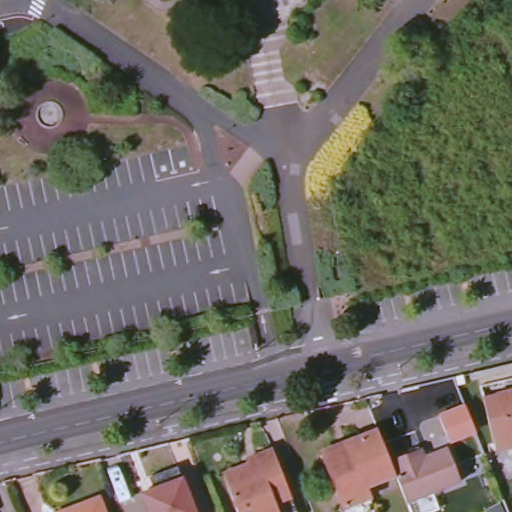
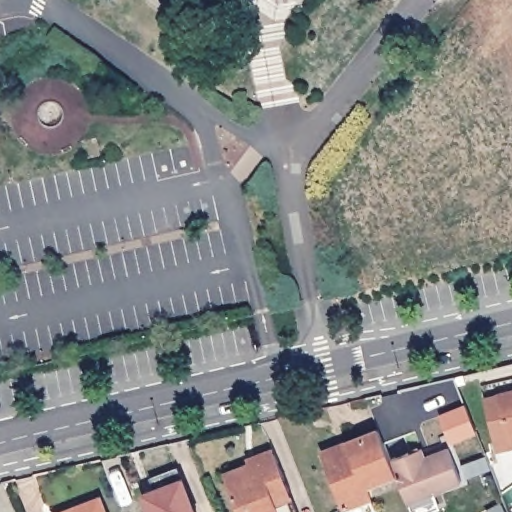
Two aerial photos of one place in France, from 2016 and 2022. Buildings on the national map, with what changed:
unchanged [(499,396),(512,393),(512,448),(510,438),(499,396)]
unchanged [(373,498),(347,510),(326,458),(350,448),(348,442),(380,431),(392,460),(398,477),(370,488),(373,498)]
unchanged [(417,460),(450,448),(463,482),(410,505),(398,477),(392,460),(413,452),(417,460)]
unchanged [(270,449),(295,510),(291,512),(238,512),(220,469),(270,449)]
unchanged [(153,493),(149,482),(178,470),(195,512),(147,512),(142,498),(153,493)]
unchanged [(98,491),(107,512),(54,512),(53,510),(98,491)]

